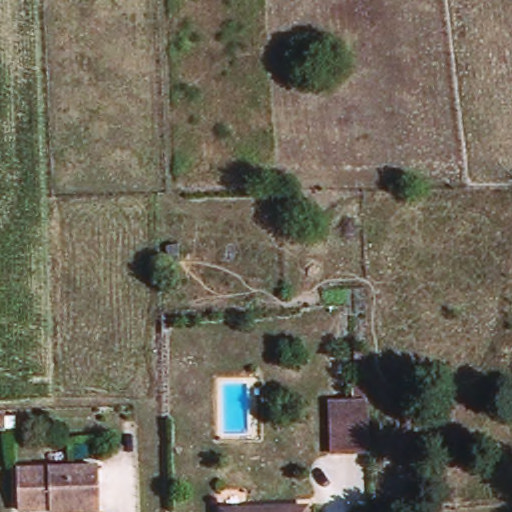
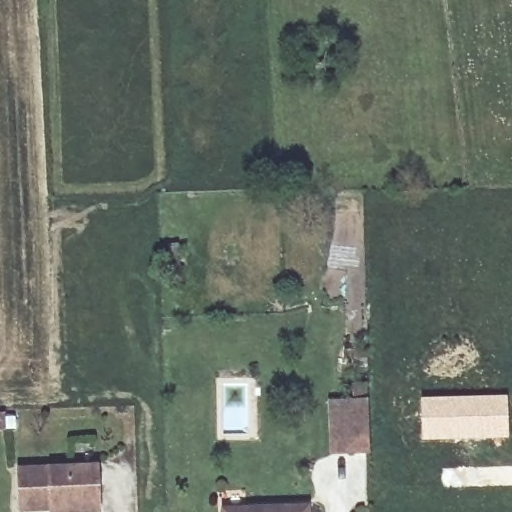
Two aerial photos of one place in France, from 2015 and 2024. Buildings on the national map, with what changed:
unchanged [(339,403),(354,402),(360,402),(359,383),(377,382),(379,449),(357,450),(340,451),(339,403)]
new [(507,395),(508,438),(420,441),(419,396),(507,395)]
unchanged [(30,511),(28,471),(107,467),(108,508),(95,508),(95,512),(73,512),(70,510),(30,511)]
unchanged [(318,512),(234,512),(234,508),(318,506),(318,512)]

